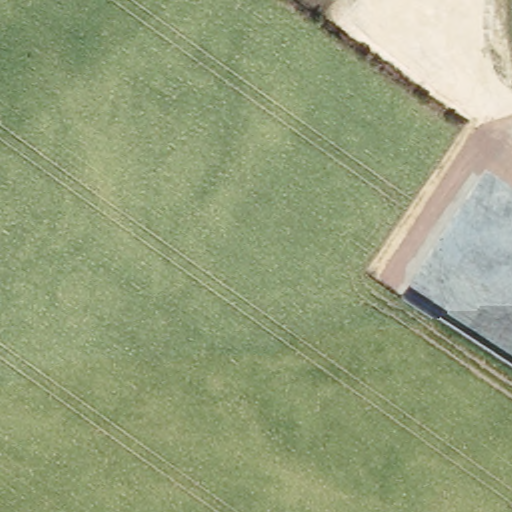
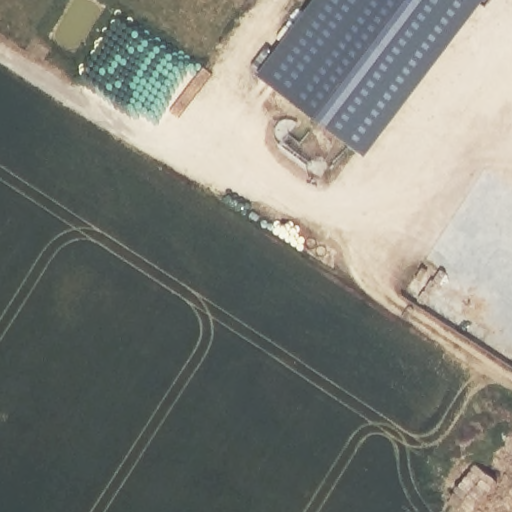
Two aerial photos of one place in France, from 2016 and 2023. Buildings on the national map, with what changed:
new [(316,0),(485,0),(370,149),(264,69),(316,0)]

